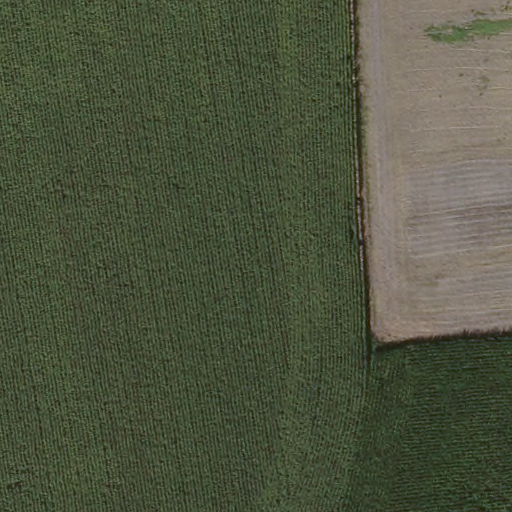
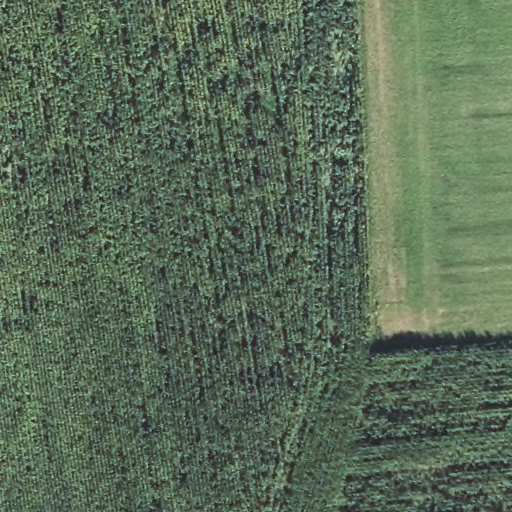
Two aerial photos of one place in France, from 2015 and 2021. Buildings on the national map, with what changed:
[]

